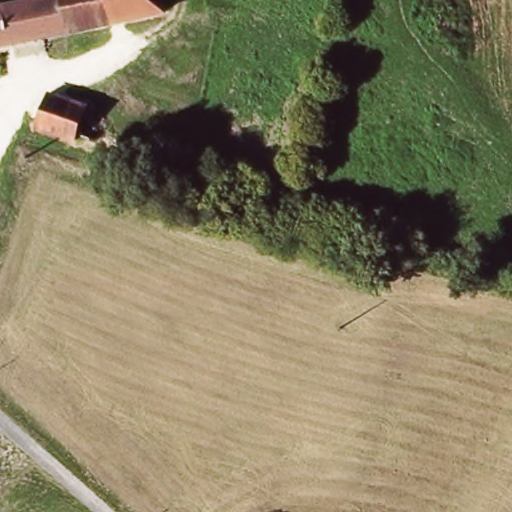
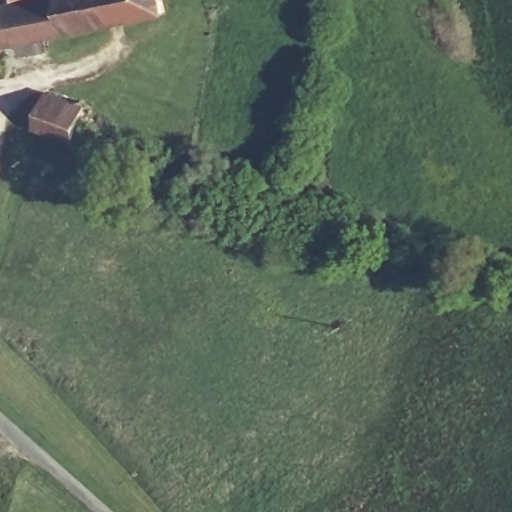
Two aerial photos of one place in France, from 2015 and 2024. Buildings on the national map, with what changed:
unchanged [(17,7),(56,0),(55,0),(155,0),(159,19),(4,47),(2,11),(17,7)]
unchanged [(0,48),(0,11),(2,11),(4,47),(0,48)]
unchanged [(37,126),(50,89),(87,102),(73,139),(37,126)]

